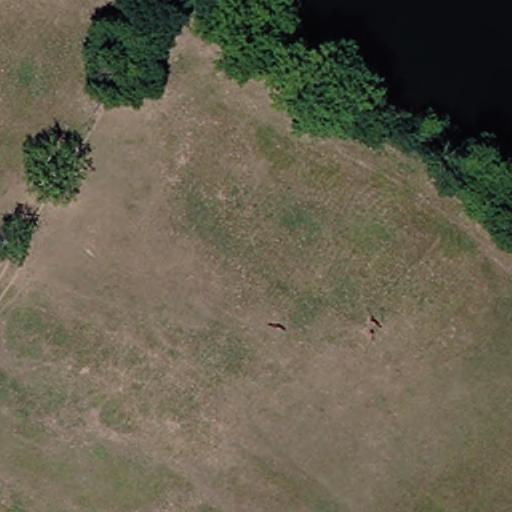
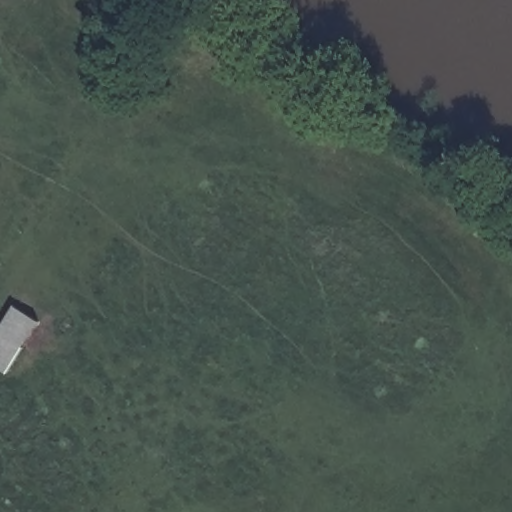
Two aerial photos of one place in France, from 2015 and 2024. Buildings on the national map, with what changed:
new [(0,370),(0,328),(13,306),(39,322),(7,374),(0,370)]

